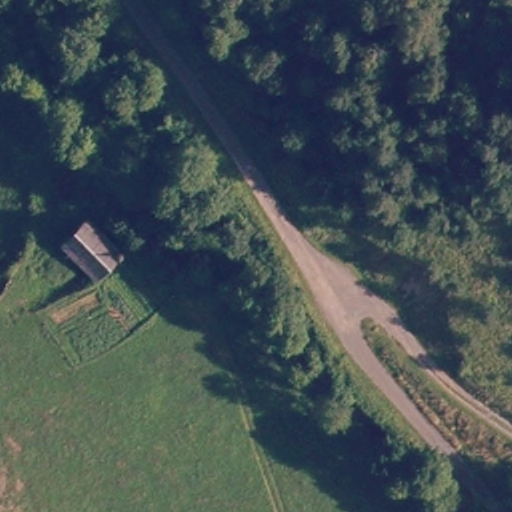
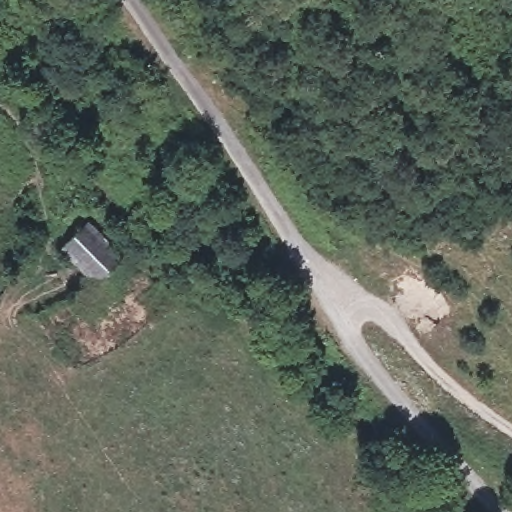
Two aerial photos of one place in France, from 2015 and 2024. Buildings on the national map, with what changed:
unchanged [(100,281),(62,245),(87,222),(125,258),(114,270),(100,281)]

